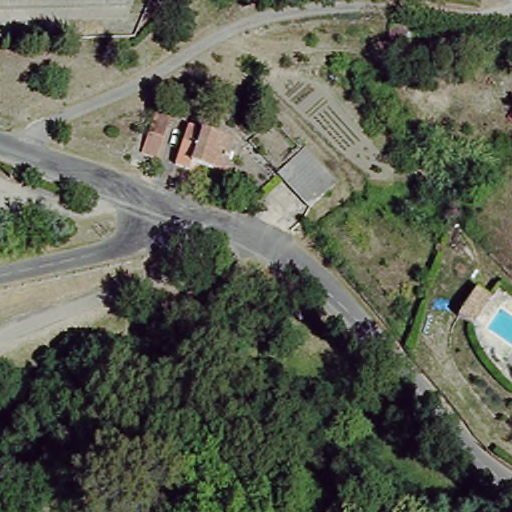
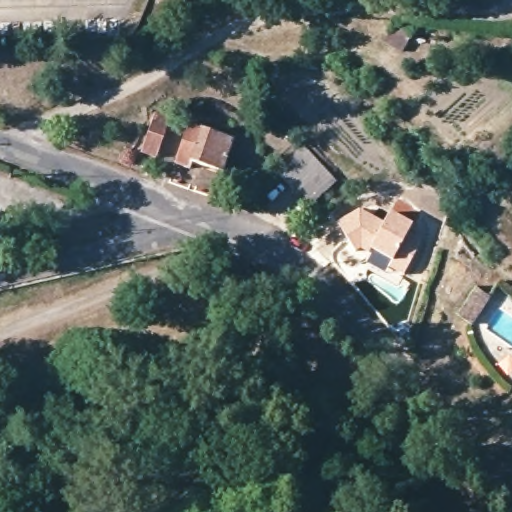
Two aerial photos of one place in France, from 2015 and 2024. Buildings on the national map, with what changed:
unchanged [(416,24),(404,50),(385,40),(395,15),(416,24)]
unchanged [(176,119),(158,160),(144,153),(160,113),(176,119)]
unchanged [(239,141),(226,172),(197,161),(193,170),(183,165),(199,125),(239,141)]
unchanged [(338,178),(311,204),(279,171),(306,145),(338,178)]
new [(360,209),(386,222),(391,211),(414,224),(410,231),(423,237),(405,273),(390,265),(393,258),(374,249),(371,252),(364,247),(356,252),(338,222),(360,209)]
unchanged [(487,295),(469,325),(456,316),(474,287),(487,295)]

